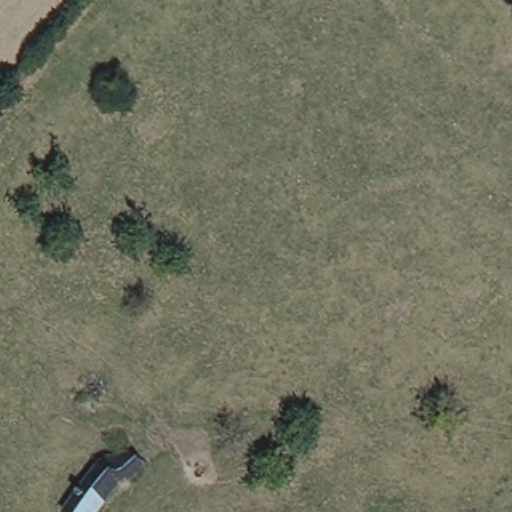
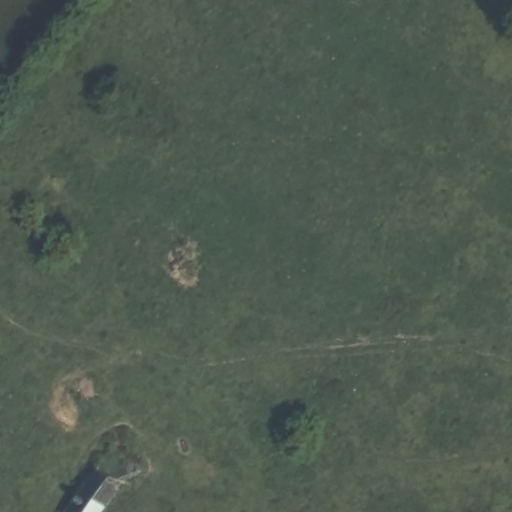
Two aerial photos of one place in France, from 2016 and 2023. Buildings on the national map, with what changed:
unchanged [(102,512),(75,512),(117,437),(140,453),(102,512)]

